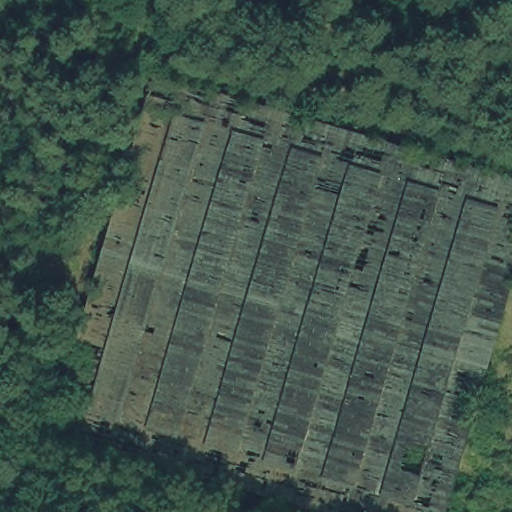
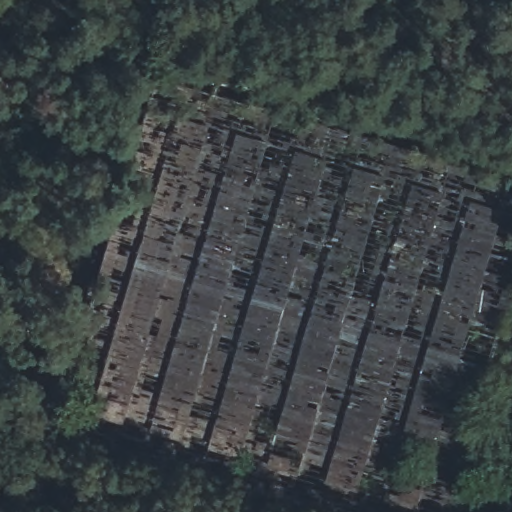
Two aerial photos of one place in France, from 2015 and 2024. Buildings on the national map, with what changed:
unchanged [(450,512),(329,512),(56,431),(158,77),(512,177),(512,306),(450,512)]

